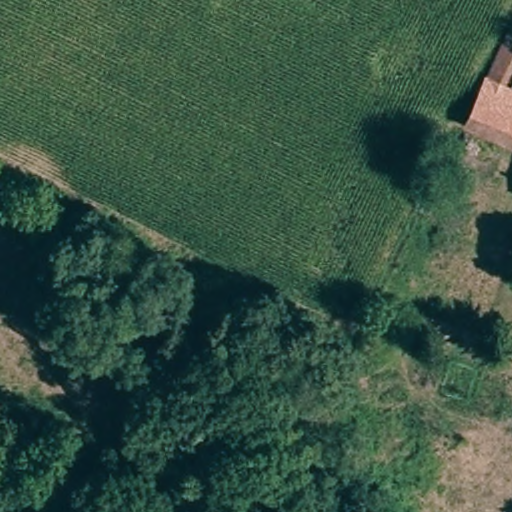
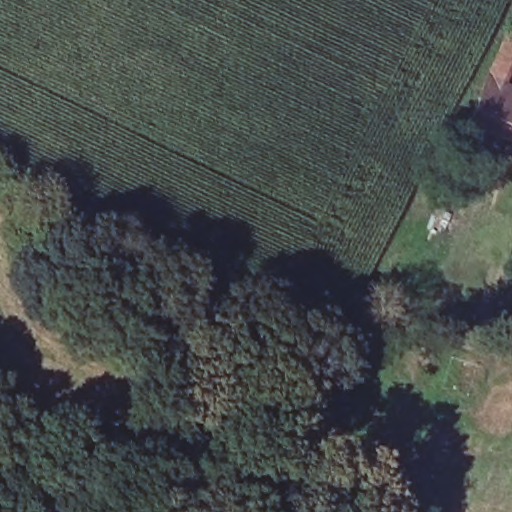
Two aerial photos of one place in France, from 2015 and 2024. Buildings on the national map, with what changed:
unchanged [(509,35),(512,36),(512,60),(500,85),(512,92),(512,142),(511,144),(473,126),(467,124),(509,35)]

